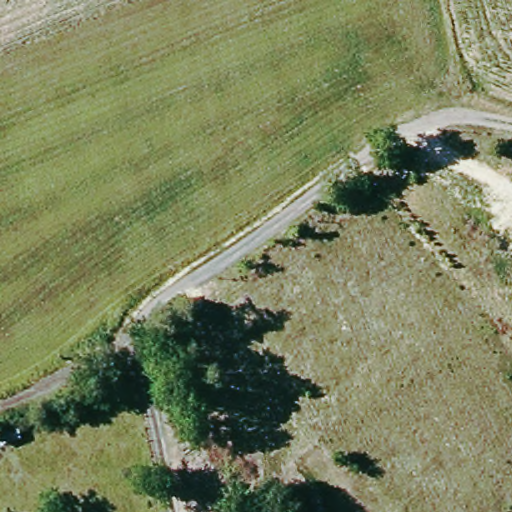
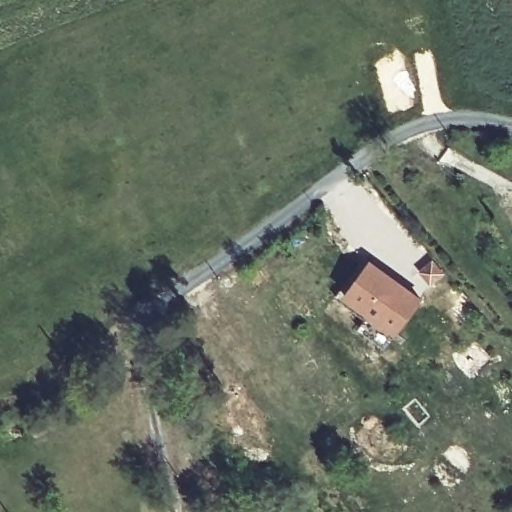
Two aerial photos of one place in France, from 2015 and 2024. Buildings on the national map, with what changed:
new [(419,299),(395,331),(347,297),(371,264),(419,299)]

